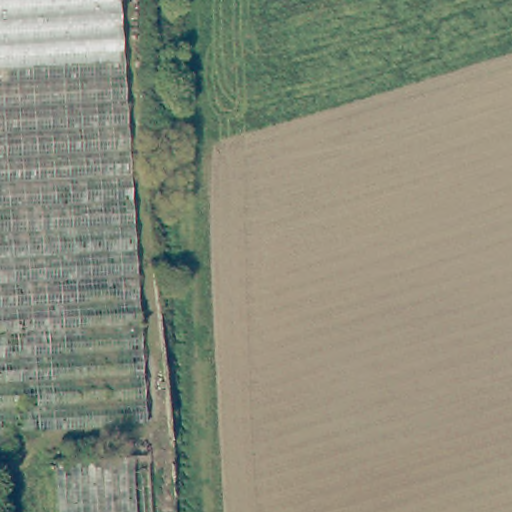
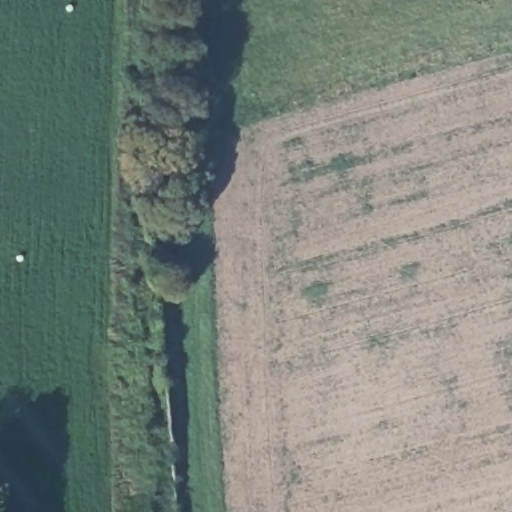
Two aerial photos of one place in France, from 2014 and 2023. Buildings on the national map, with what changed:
demolished [(144,423),(0,434),(0,0),(117,0),(144,423)]
demolished [(55,512),(52,463),(144,457),(148,512),(55,512)]

